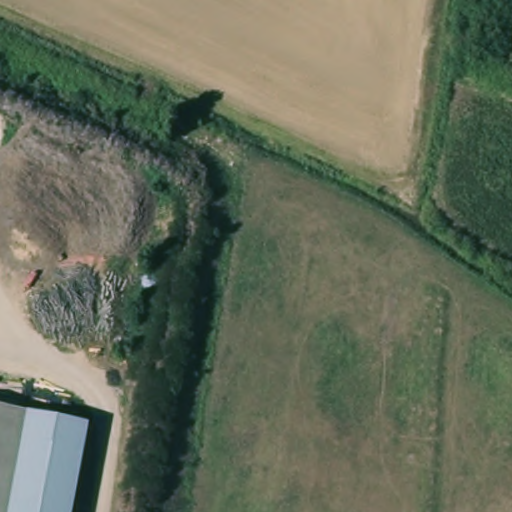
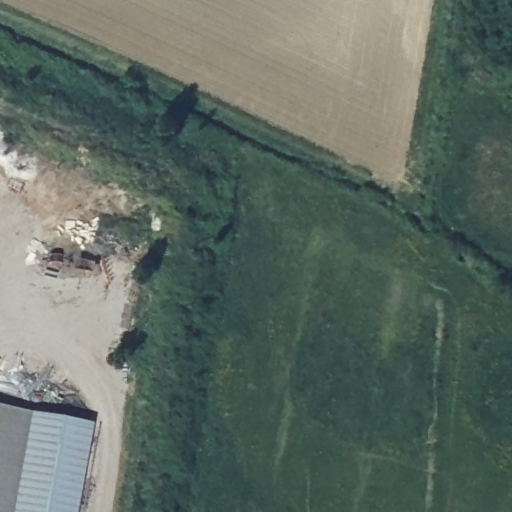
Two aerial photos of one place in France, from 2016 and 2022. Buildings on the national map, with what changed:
unchanged [(90,426),(74,512),(0,512),(0,410),(90,426)]

